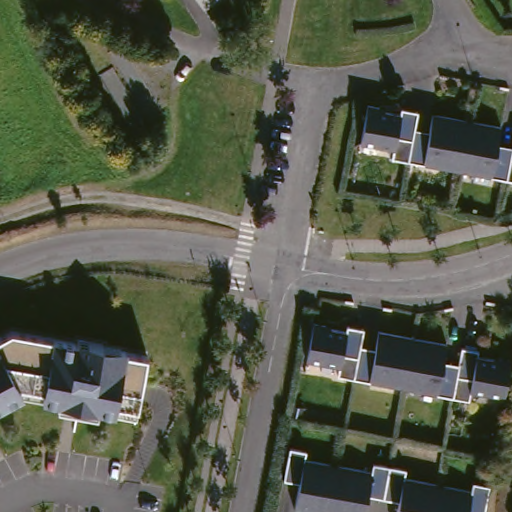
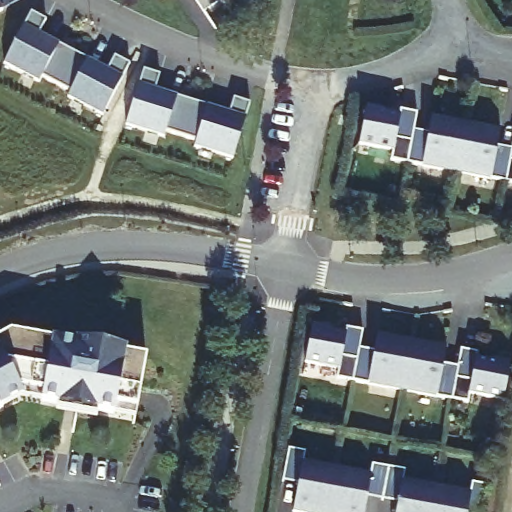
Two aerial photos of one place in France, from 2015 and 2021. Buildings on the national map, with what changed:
new [(3,5),(0,7),(0,0),(13,0),(3,5)]
unchanged [(211,10),(204,0),(227,0),(211,10)]
new [(31,6),(47,14),(40,28),(108,64),(115,50),(130,59),(103,109),(68,91),(71,85),(42,70),(39,76),(5,58),(31,6)]
new [(194,147),(196,140),(166,131),(164,137),(126,124),(143,70),(160,75),(154,89),(231,112),(235,98),(249,103),(246,118),(234,159),(194,147)]
unchanged [(383,108),(382,111),(403,116),(404,110),(421,113),(416,136),(430,139),(435,117),(503,132),(498,155),(512,158),(512,156),(512,187),(393,160),(395,150),(362,143),(371,105),(383,108)]
unchanged [(333,364),(300,358),(307,320),(319,322),(318,325),(339,329),(341,323),(358,326),(354,349),(368,352),(373,329),(441,341),(437,364),(452,367),(456,344),(473,347),(472,353),(493,357),(493,354),(505,356),(498,394),(465,388),(464,397),(331,373),(333,364)]
unchanged [(141,354),(133,417),(16,396),(0,405),(0,331),(1,330),(141,354)]
unchanged [(378,466),(411,472),(409,481),(477,493),(479,484),(495,487),(491,512),(477,512),(475,511),(474,512),(404,512),(406,499),(373,493),(370,512),(298,512),(304,480),(288,477),(293,450),(310,453),(308,462),(376,475),(378,466)]

